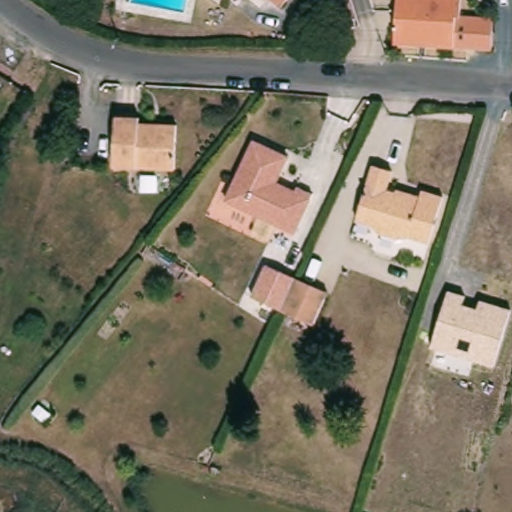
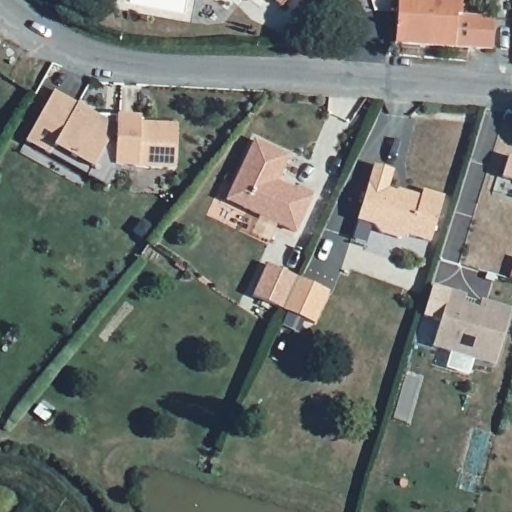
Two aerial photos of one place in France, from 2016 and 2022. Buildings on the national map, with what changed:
unchanged [(497,49),(459,47),(399,44),(402,0),(466,0),(466,9),(471,10),(471,16),(498,17),(497,49)]
new [(54,90),(98,116),(116,116),(114,165),(104,182),(26,142),(54,90)]
unchanged [(174,169),(114,165),(116,116),(140,117),(139,123),(177,125),(174,169)]
unchanged [(244,206),(231,200),(238,184),(258,140),(284,152),(292,156),(281,181),(300,190),(302,185),(317,193),(300,232),(247,207),(254,194),(249,200),(244,206)]
new [(512,154),(512,176),(502,174),(509,153),(512,154)]
unchanged [(434,242),(413,236),(403,237),(386,232),(377,226),(362,221),(377,165),(397,171),(391,190),(411,195),(412,192),(425,196),(427,190),(447,196),(434,242)]
unchanged [(318,323),(287,309),(291,300),(301,277),(333,292),(318,323)]
unchanged [(448,291),(467,295),(465,305),(477,309),(480,300),(512,311),(497,365),(432,347),(448,291)]

